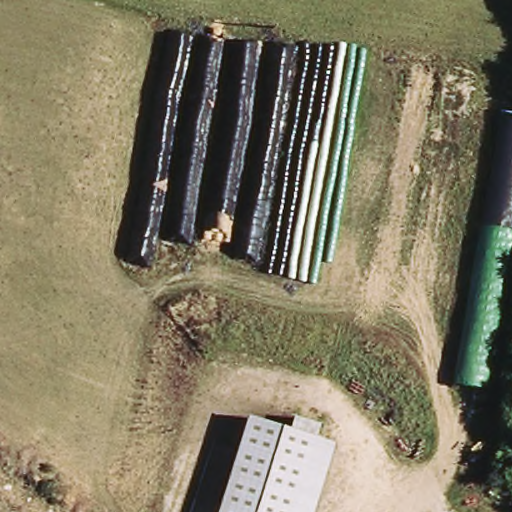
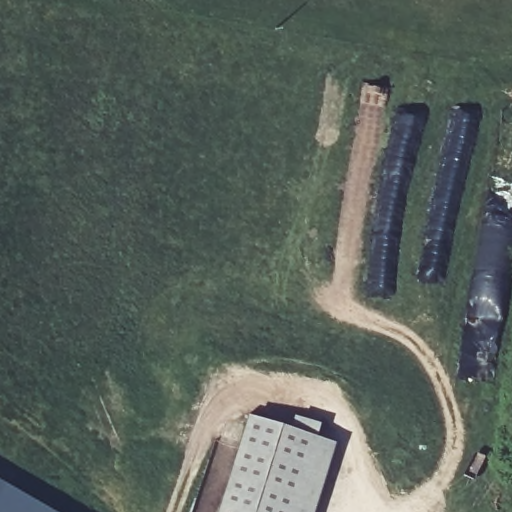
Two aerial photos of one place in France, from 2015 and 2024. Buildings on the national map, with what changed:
unchanged [(512,295),(494,390),(454,382),(502,114),(512,116),(512,295)]
unchanged [(297,417),(324,425),(320,437),(340,443),(318,512),(221,512),(251,416),(292,429),(297,417)]
new [(53,512),(0,512),(0,498),(7,486),(53,512)]

